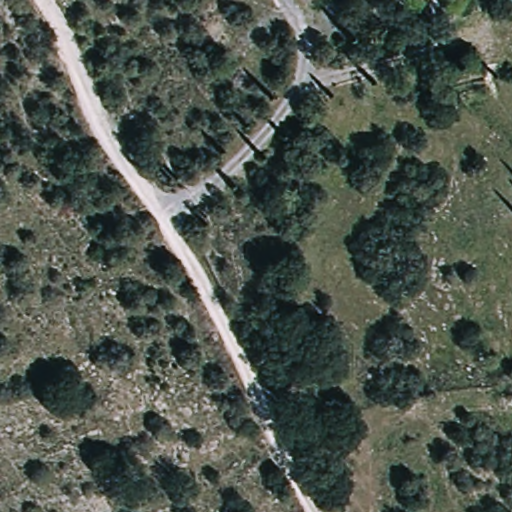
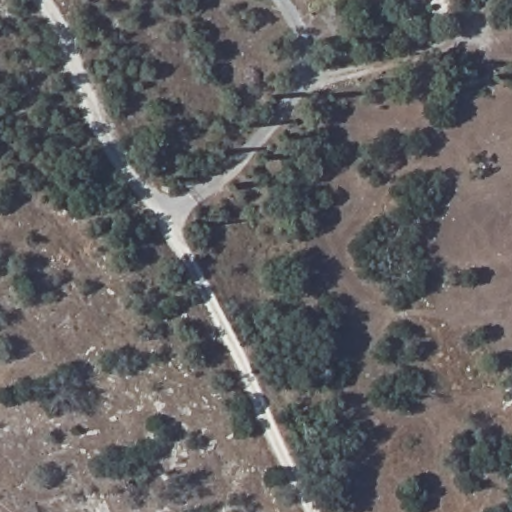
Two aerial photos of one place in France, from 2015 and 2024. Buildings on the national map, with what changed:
unchanged [(449,0),(468,0),(459,11),(449,0)]

